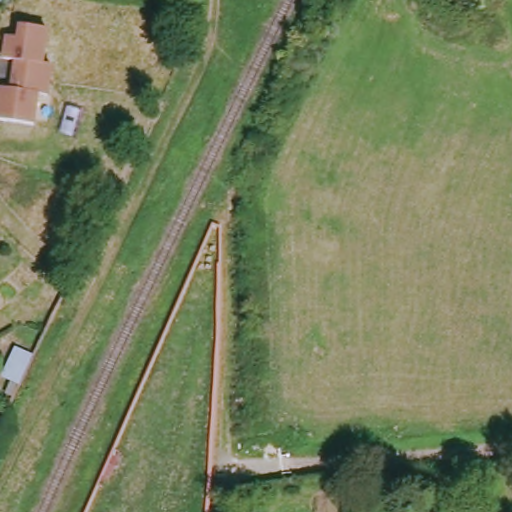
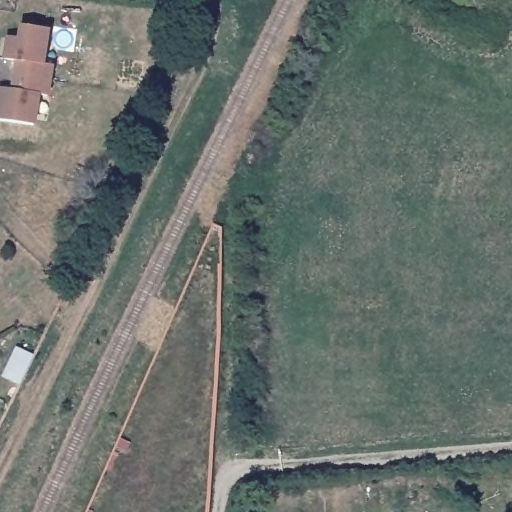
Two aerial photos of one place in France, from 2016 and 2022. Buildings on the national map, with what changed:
unchanged [(48,31),(43,66),(51,67),(49,83),(46,99),(38,98),(33,126),(0,121),(0,90),(12,92),(14,77),(17,63),(4,61),(8,39),(19,40),(21,27),(48,31)]

